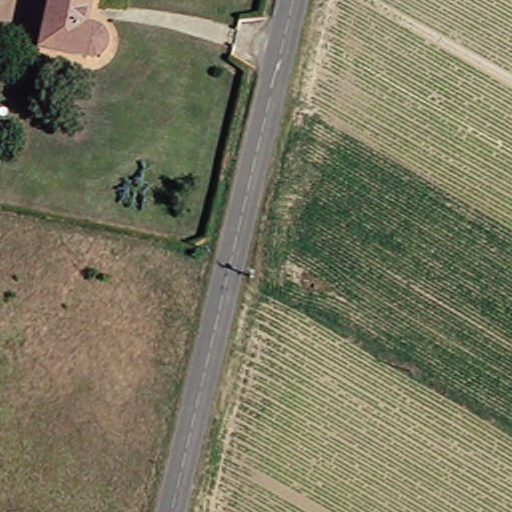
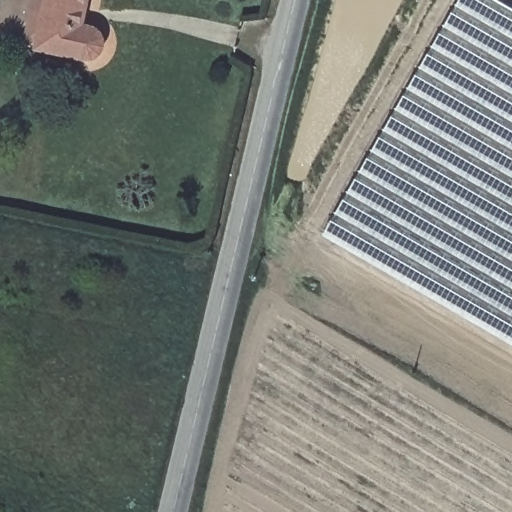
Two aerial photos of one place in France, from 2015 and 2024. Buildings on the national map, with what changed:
unchanged [(94,24),(101,28),(106,33),(108,36),(109,42),(108,49),(105,54),(95,61),(39,49),(50,0),(92,0),(87,23),(94,24)]
new [(499,0),(512,8),(512,342),(324,233),(460,0),(499,0)]

